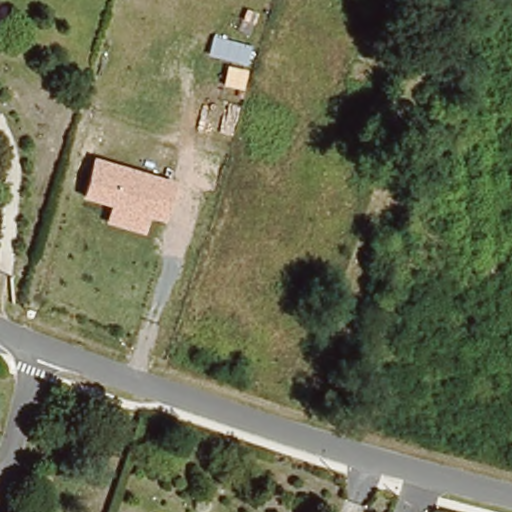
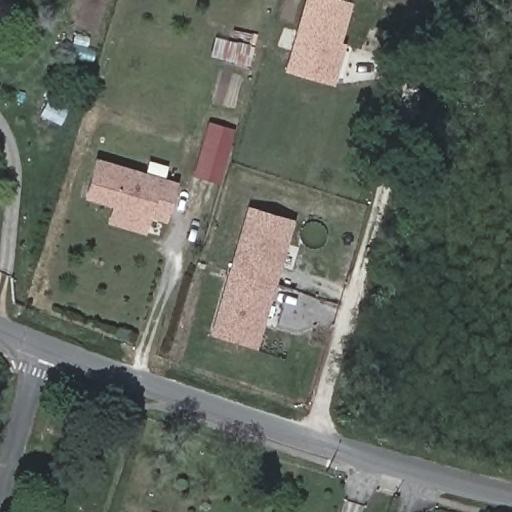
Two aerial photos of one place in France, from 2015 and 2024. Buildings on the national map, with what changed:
new [(284,73),(305,0),(342,0),(352,3),(340,42),(346,44),(332,85),(284,73)]
new [(208,121),(236,129),(219,185),(192,176),(208,121)]
new [(178,181),(167,222),(150,219),(146,234),(107,224),(111,207),(83,199),(96,158),(178,181)]
new [(249,209),(292,221),(254,345),(212,332),(249,209)]

